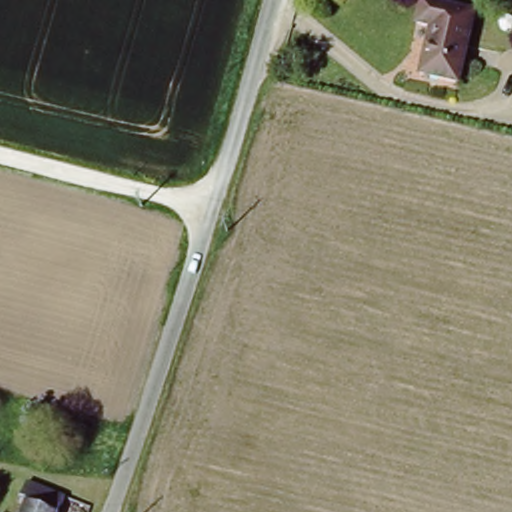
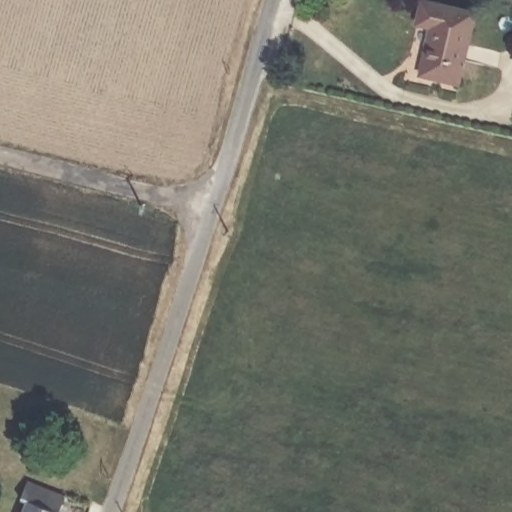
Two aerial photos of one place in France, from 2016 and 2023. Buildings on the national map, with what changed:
unchanged [(434,22),(421,18),(426,0),(449,0),(479,7),(462,79),(424,69),(434,22)]
unchanged [(27,486),(27,483),(90,504),(87,512),(0,512),(0,508),(10,480),(27,486)]

